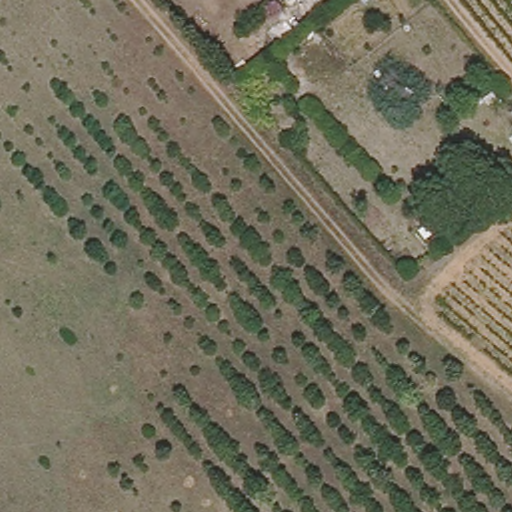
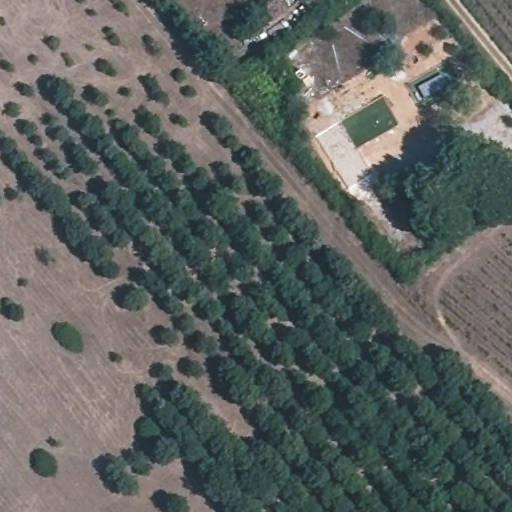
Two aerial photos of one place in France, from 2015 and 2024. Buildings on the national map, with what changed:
unchanged [(289,18),(271,33),(262,21),(279,6),(289,18)]

